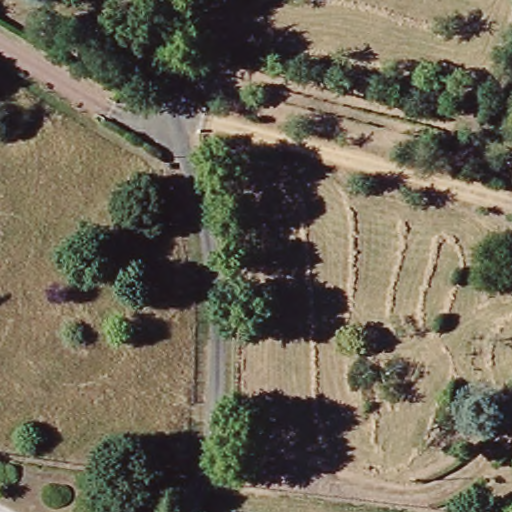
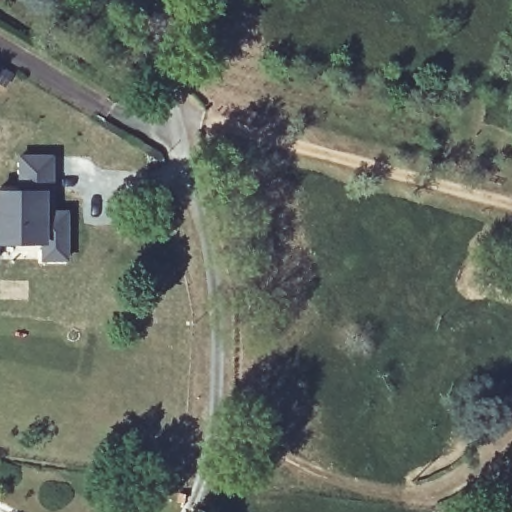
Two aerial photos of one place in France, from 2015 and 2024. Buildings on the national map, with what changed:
new [(20,192),(20,156),(51,157),(51,192),(51,212),(66,212),(66,259),(43,259),(42,241),(0,241),(0,191),(20,192)]

